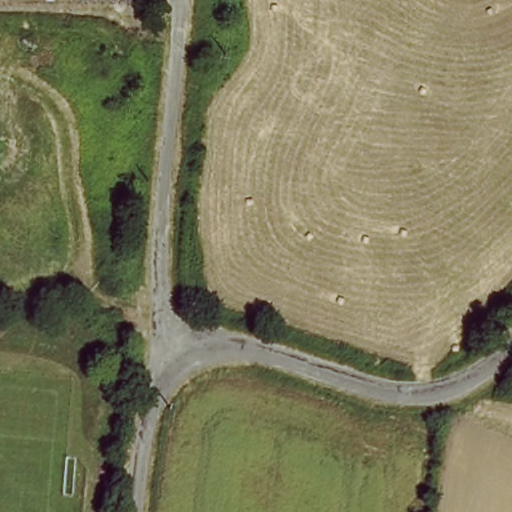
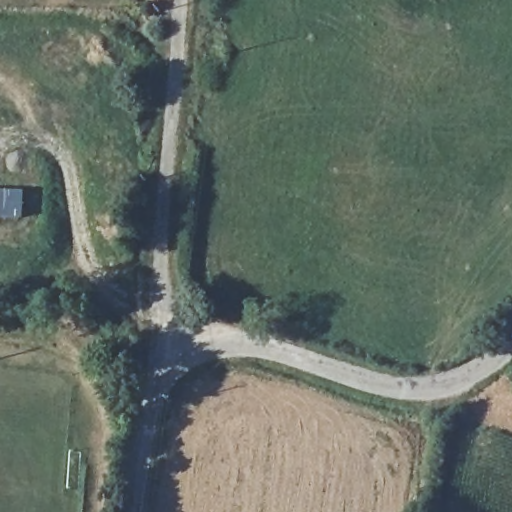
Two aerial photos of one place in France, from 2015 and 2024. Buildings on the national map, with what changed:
new [(0,220),(0,192),(25,193),(25,221),(0,220)]

